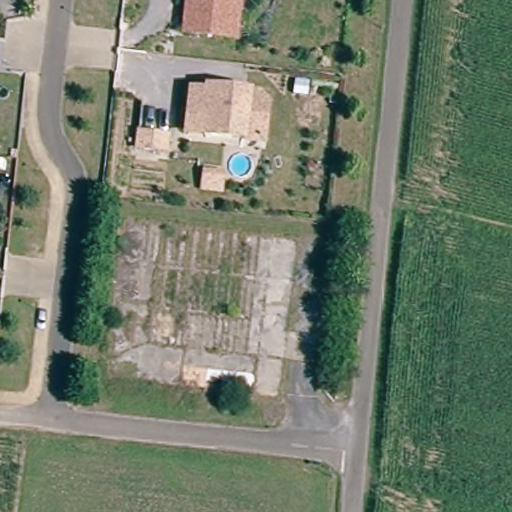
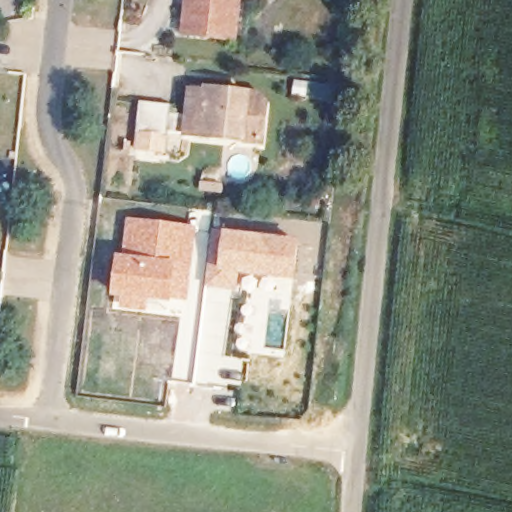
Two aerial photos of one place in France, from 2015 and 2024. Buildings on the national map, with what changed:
unchanged [(233,13),(231,35),(182,30),(184,8),(185,0),(234,0),(233,13)]
unchanged [(188,108),(191,83),(207,85),(207,81),(233,84),(245,85),(258,86),(266,95),(262,133),(203,127),(187,126),(188,108)]
unchanged [(165,145),(156,145),(135,142),(136,126),(158,128),(167,129),(165,145)]
new [(116,254),(121,255),(126,216),(198,226),(189,304),(172,302),(171,306),(151,304),(150,313),(110,309),(116,254)]
new [(209,262),(216,263),(221,230),(301,239),(295,283),(240,275),(237,292),(234,292),(205,287),(209,262)]
new [(205,287),(234,292),(226,336),(219,335),(220,327),(209,328),(209,329),(206,329),(203,346),(199,346),(205,287)]

